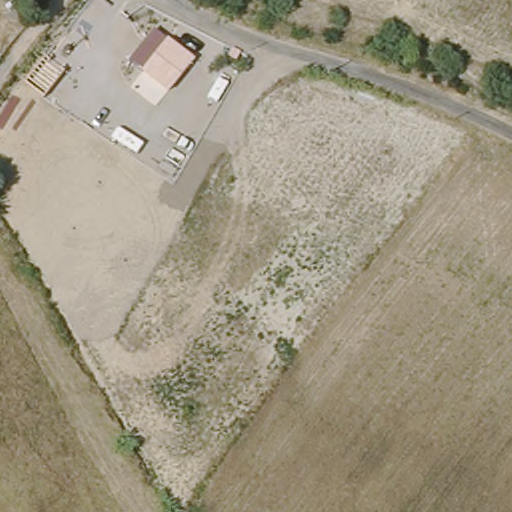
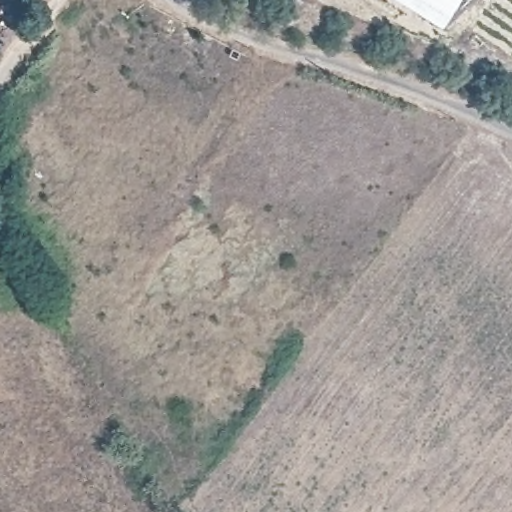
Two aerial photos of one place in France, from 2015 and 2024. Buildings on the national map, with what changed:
new [(443,29),(398,0),(461,0),(443,29)]
demolished [(169,44),(192,61),(157,103),(135,80),(169,44)]

